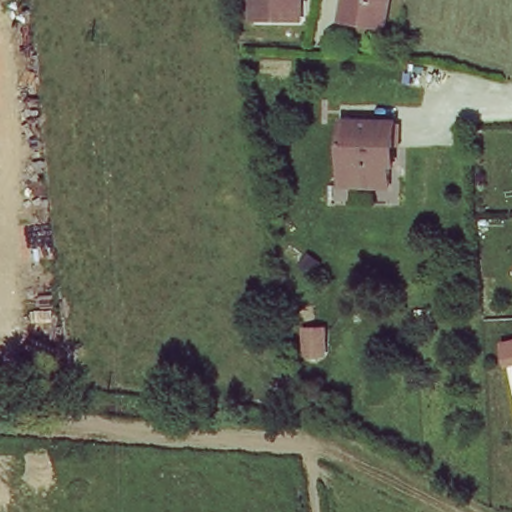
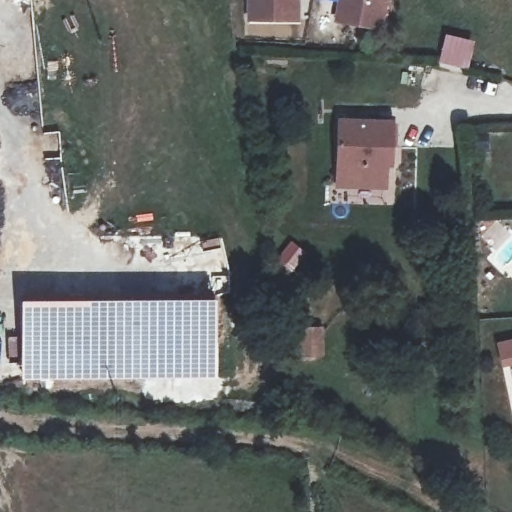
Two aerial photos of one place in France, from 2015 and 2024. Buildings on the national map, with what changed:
unchanged [(254,15),(253,0),(299,0),(299,8),(299,15),(285,15),(254,15)]
unchanged [(386,0),(382,24),(347,17),(340,16),(342,0),(386,0)]
unchanged [(335,165),(336,122),(388,124),(386,147),(380,147),(379,187),(344,186),(334,186),(335,165)]
new [(21,378),(21,299),(215,298),(216,378),(21,378)]
unchanged [(319,325),(318,353),(295,355),(299,322),(319,325)]

